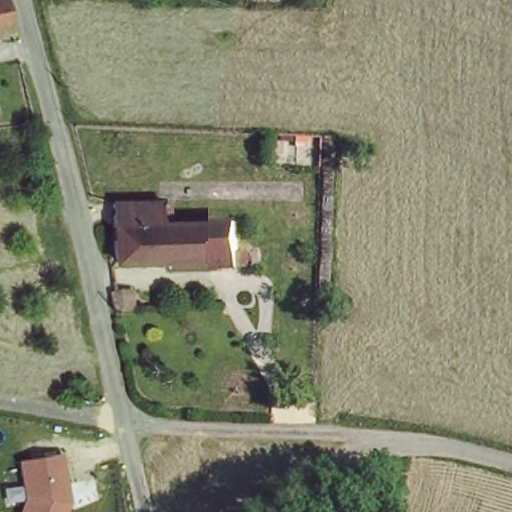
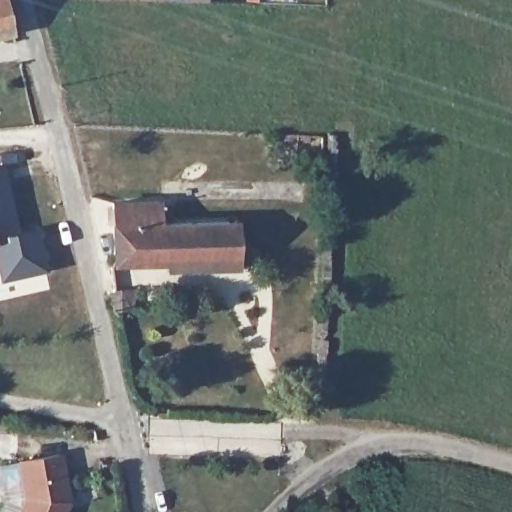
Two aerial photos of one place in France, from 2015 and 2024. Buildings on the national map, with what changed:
unchanged [(0,46),(0,0),(6,0),(15,40),(0,46)]
new [(19,231),(36,227),(46,271),(0,281),(0,164),(3,164),(19,231)]
unchanged [(168,262),(125,261),(113,262),(112,205),(160,205),(160,225),(237,227),(236,274),(208,273),(168,273),(168,262)]
unchanged [(120,297),(121,315),(110,315),(106,298),(120,297)]
unchanged [(66,512),(18,512),(24,495),(18,460),(61,452),(70,500),(66,512)]

